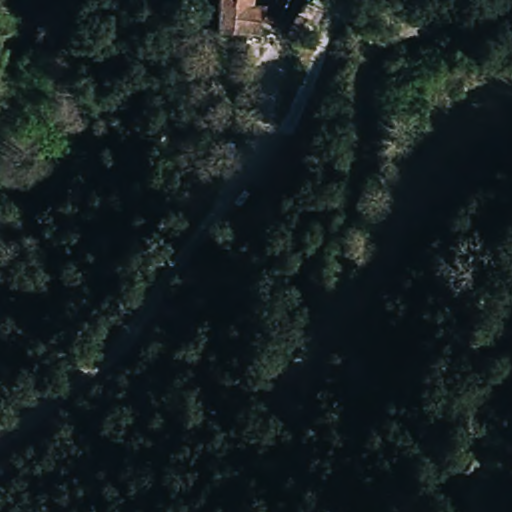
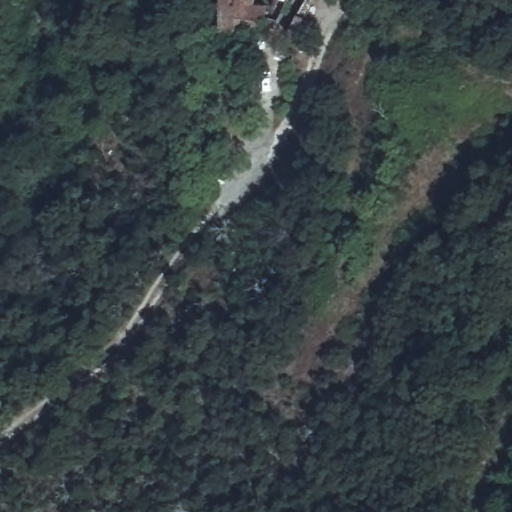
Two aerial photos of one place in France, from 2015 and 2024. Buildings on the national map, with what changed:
unchanged [(212,0),(247,0),(258,1),(255,19),(251,38),(240,37),(211,35),(213,14),(210,14),(212,0)]
unchanged [(302,40),(284,31),(294,11),(312,20),(302,40)]

